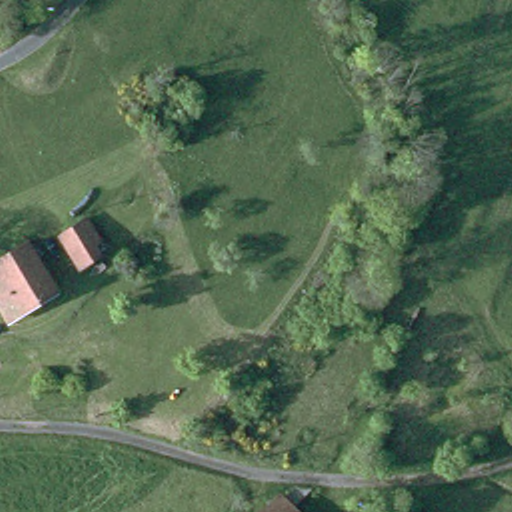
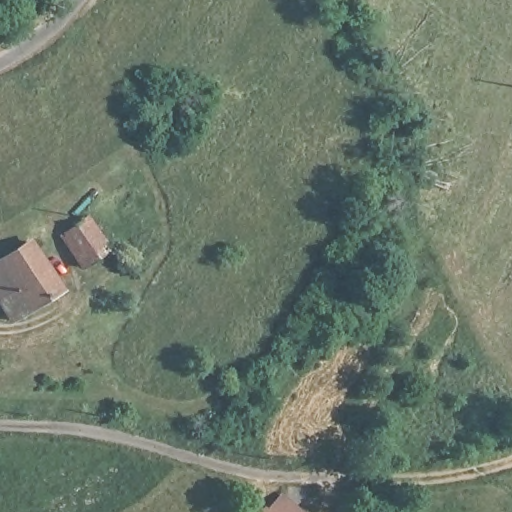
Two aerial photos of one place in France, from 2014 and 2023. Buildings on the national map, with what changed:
unchanged [(62,236),(83,218),(108,246),(86,265),(62,236)]
unchanged [(55,285),(8,316),(0,304),(0,254),(22,239),(55,285)]
unchanged [(256,512),(276,492),(298,512),(256,512)]
unchanged [(384,512),(358,512),(366,499),(384,511),(384,512)]

